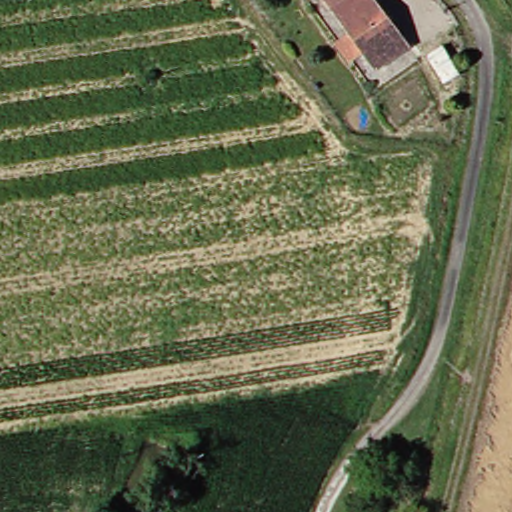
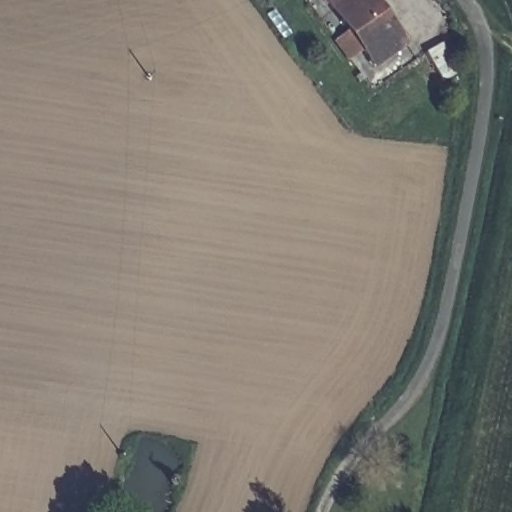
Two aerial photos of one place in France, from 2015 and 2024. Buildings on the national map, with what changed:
unchanged [(401,37),(366,55),(338,0),(382,0),(401,37)]

